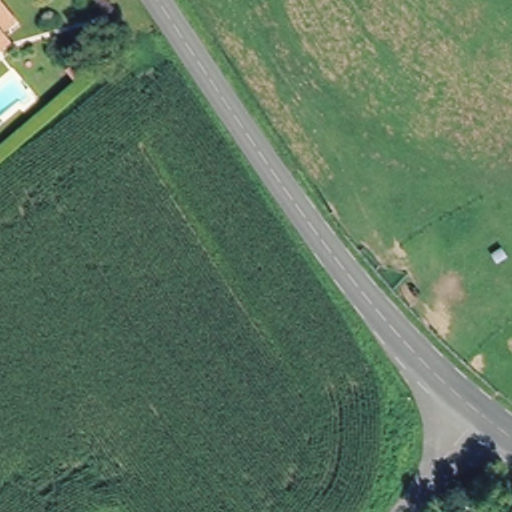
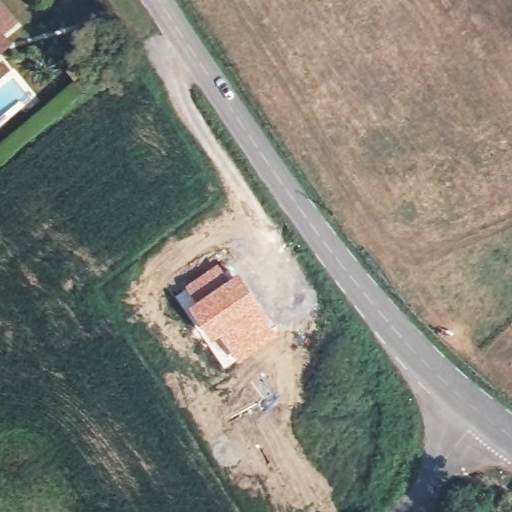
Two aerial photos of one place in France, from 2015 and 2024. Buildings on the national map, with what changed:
unchanged [(17,22),(0,37),(0,3),(17,22)]
unchanged [(3,43),(0,46),(0,39),(3,43)]
new [(218,262),(228,277),(238,271),(278,337),(238,362),(219,337),(211,341),(175,295),(218,262)]

